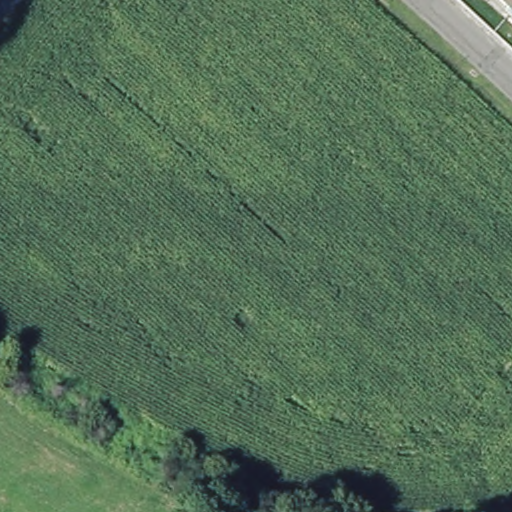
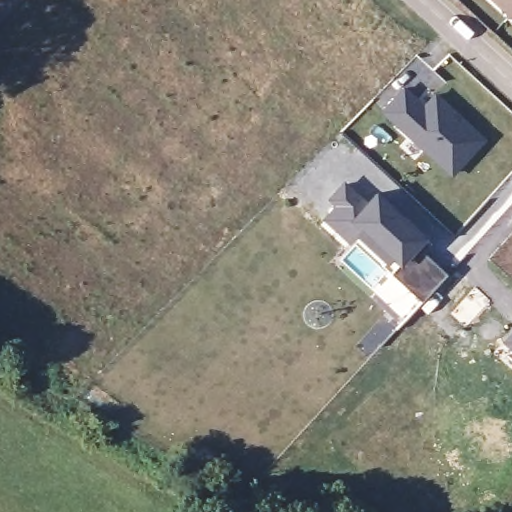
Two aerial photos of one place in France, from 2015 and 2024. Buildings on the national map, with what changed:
unchanged [(494,0),(512,0),(512,16),(494,0)]
new [(404,89),(424,107),(436,95),(484,138),(453,173),(384,112),(404,89)]
new [(333,205),(325,199),(343,179),(367,197),(376,188),(412,220),(429,240),(423,247),(391,273),(356,237),(349,245),(320,220),(333,205)]
new [(423,247),(449,272),(421,303),(391,273),(423,247)]
new [(380,287),(390,296),(396,291),(399,293),(400,292),(412,302),(416,298),(419,302),(404,318),(375,292),(380,287)]
new [(474,287),(489,301),(465,326),(451,313),(474,287)]
new [(382,317),(394,329),(369,357),(357,346),(382,317)]
new [(512,329),(512,352),(501,341),(512,329)]

